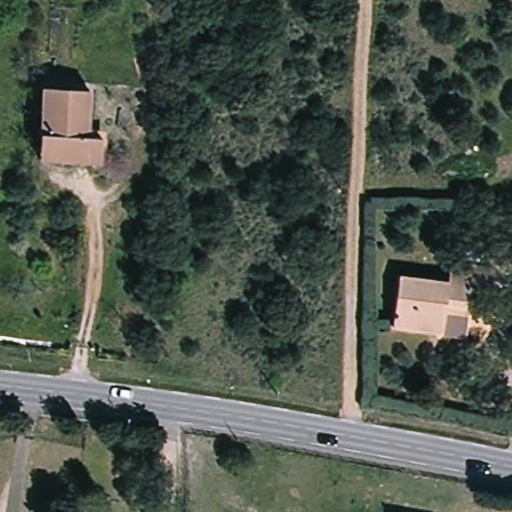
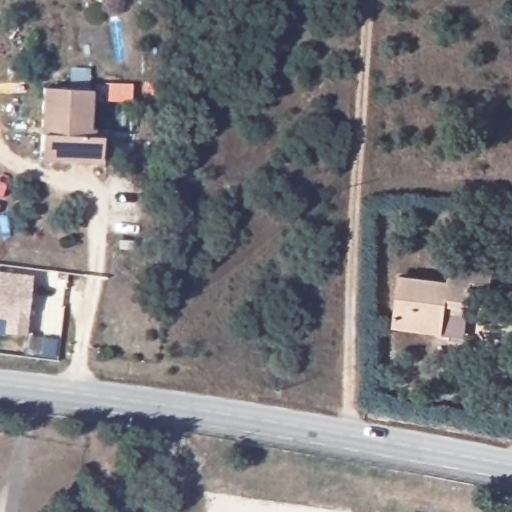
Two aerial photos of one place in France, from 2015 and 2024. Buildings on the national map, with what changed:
unchanged [(89,88),(88,132),(98,132),(98,158),(37,156),(40,86),(89,88)]
unchanged [(437,313),(433,331),(387,324),(393,275),(442,281),(446,260),(487,266),(485,286),(465,285),(462,305),(460,316),(437,313)]
new [(26,336),(3,335),(5,320),(0,319),(0,272),(32,276),(26,336)]

